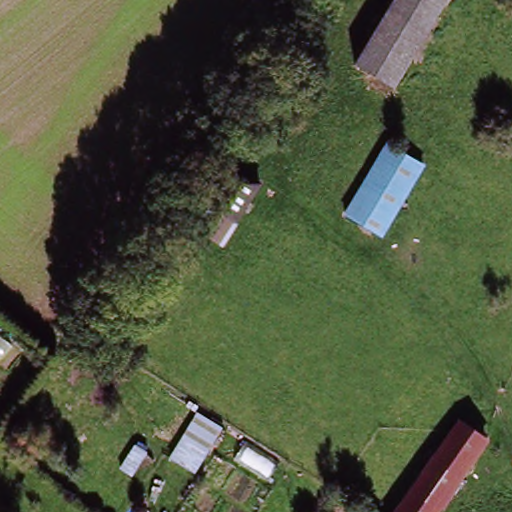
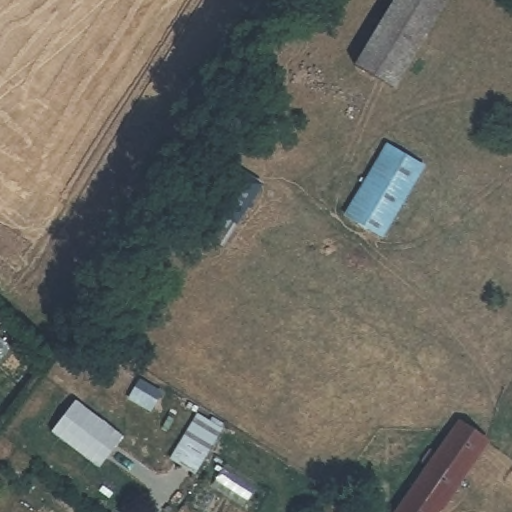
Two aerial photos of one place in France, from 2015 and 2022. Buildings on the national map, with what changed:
unchanged [(390,0),(444,0),(393,90),(351,66),(390,0)]
unchanged [(343,215),(385,145),(424,167),(381,240),(343,215)]
unchanged [(206,217),(226,180),(251,194),(231,232),(206,217)]
new [(97,467),(52,431),(77,400),(123,436),(97,467)]
unchanged [(230,429),(199,475),(178,460),(206,410),(230,429)]
unchanged [(440,512),(392,512),(410,486),(456,420),(491,442),(445,505),(440,512)]

